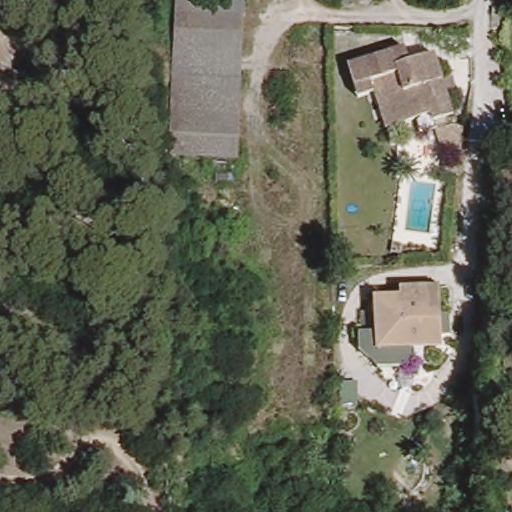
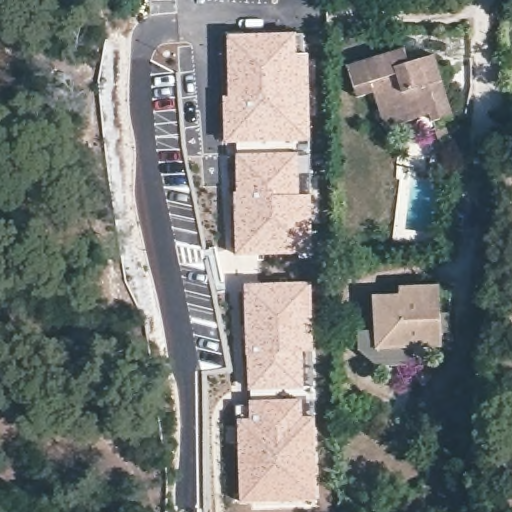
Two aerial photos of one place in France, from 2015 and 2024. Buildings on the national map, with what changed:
new [(227,96),(226,35),(296,33),(297,54),(309,54),(310,142),(223,144),(223,96),(227,96)]
unchanged [(411,115),(391,122),(382,125),(365,79),(359,60),(360,60),(400,46),(405,60),(429,52),(449,110),(431,116),(433,124),(416,130),(413,122),(411,115)]
unchanged [(34,84),(18,119),(0,110),(0,69),(34,84)]
new [(236,152),(299,151),(300,194),(310,194),(312,254),(235,256),(234,206),(236,152)]
new [(313,281),(320,507),(254,509),(254,502),(241,502),(239,445),(227,444),(227,421),(236,421),(236,405),(251,405),(248,285),(313,281)]
unchanged [(398,368),(380,369),(378,352),(360,352),(359,335),(377,333),(375,300),(400,298),(400,290),(439,287),(443,347),(423,348),(424,357),(398,368)]

